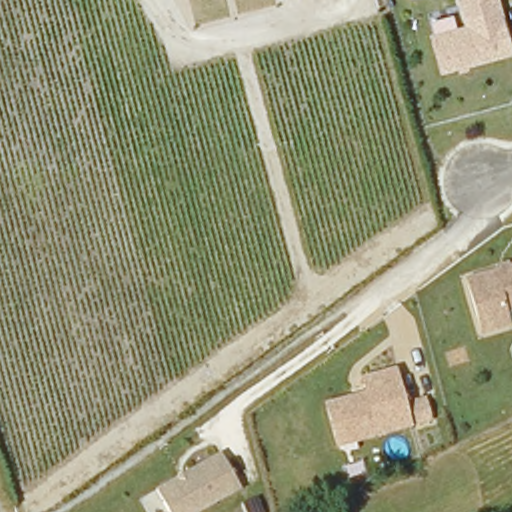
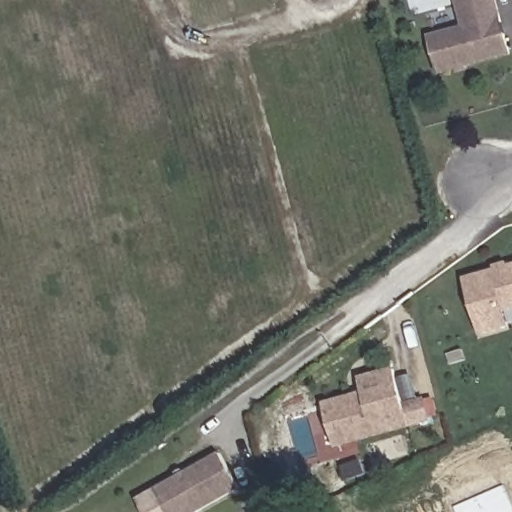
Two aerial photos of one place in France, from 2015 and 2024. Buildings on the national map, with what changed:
unchanged [(438,72),(427,37),(465,29),(456,0),(493,0),(507,54),(438,72)]
unchanged [(500,306),(504,320),(478,327),(462,275),(512,261),(512,302),(500,306)]
unchanged [(367,393),(363,378),(395,371),(404,405),(424,400),(430,421),(338,445),(327,403),(367,393)]
unchanged [(166,512),(153,490),(217,452),(237,486),(192,512),(166,512)]
new [(500,484),(511,512),(452,512),(450,506),(500,484)]

